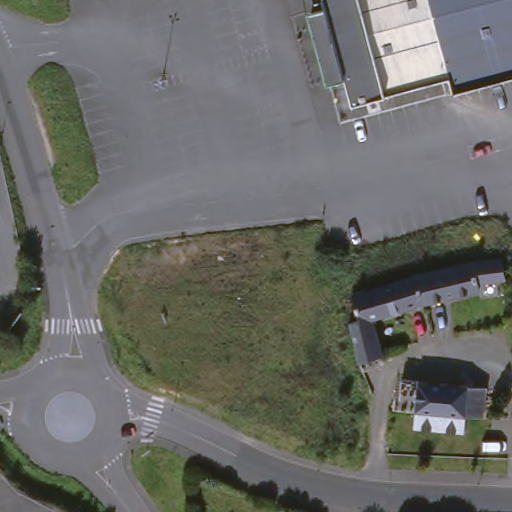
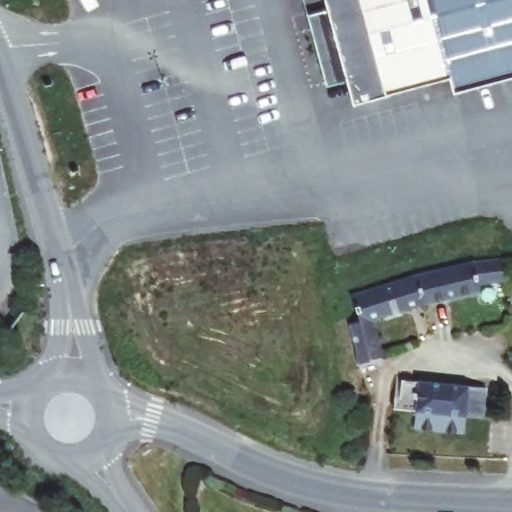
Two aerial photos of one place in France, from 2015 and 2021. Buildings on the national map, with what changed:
unchanged [(455,79),(362,103),(355,76),(332,81),(315,16),(335,9),(333,0),(431,0),(455,79)]
unchanged [(455,79),(431,0),(512,0),(512,78),(458,93),(455,79)]
unchanged [(346,324),(360,319),(351,292),(360,289),(400,277),(429,269),(436,267),(503,254),(505,265),(505,266),(509,277),(477,283),(480,294),(374,319),(385,357),(358,363),(355,350),(346,324)]
unchanged [(400,381),(491,388),(489,416),(470,415),(467,436),(449,434),(417,432),(418,414),(397,412),(398,407),(398,404),(398,403),(400,381)]

